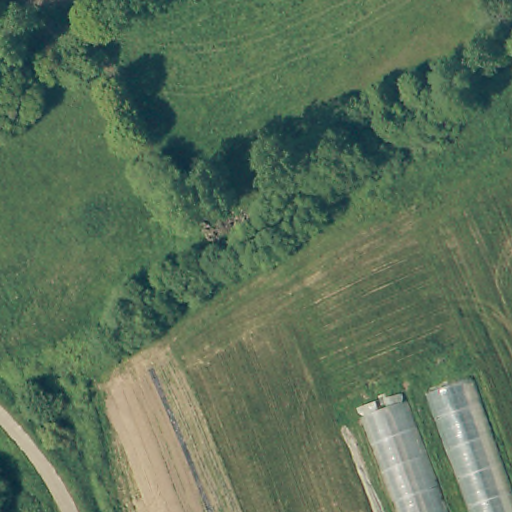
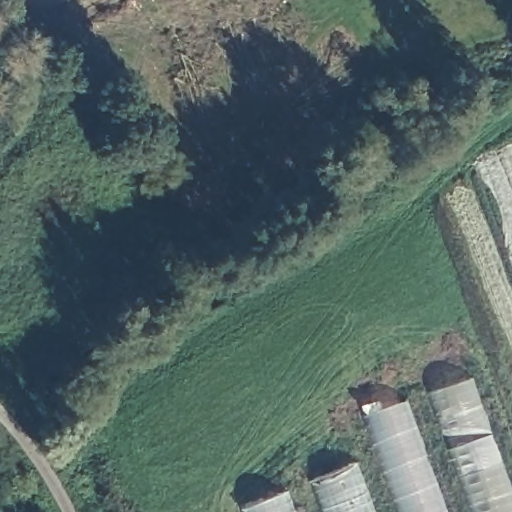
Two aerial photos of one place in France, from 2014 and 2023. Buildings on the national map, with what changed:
unchanged [(512,512),(472,512),(430,392),(471,378),(512,494),(512,512)]
unchanged [(400,512),(364,416),(406,401),(446,512),(400,512)]
new [(351,462),(370,512),(321,512),(308,478),(351,462)]
new [(284,490),(292,512),(243,512),(242,508),(284,490)]

